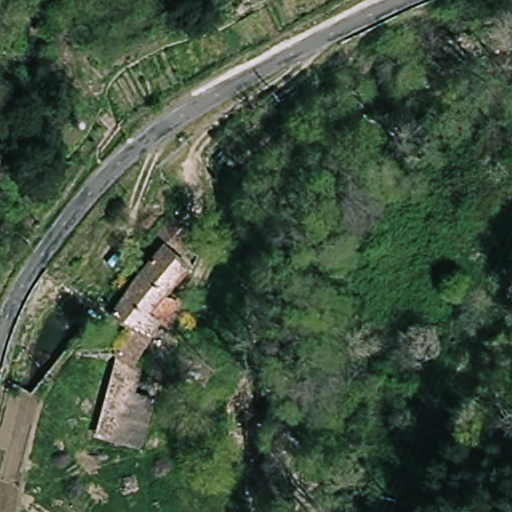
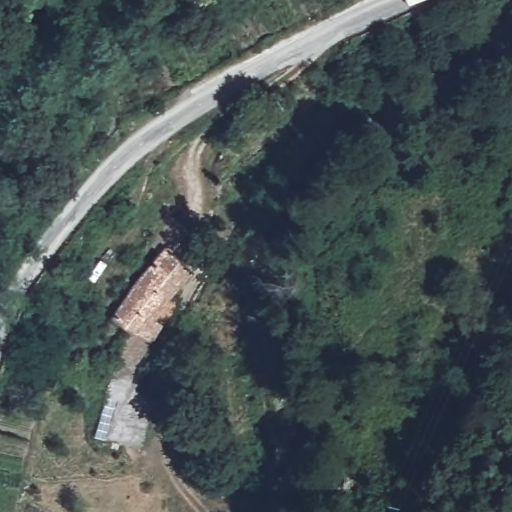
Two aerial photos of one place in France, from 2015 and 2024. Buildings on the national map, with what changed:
unchanged [(103,441),(123,359),(108,349),(126,316),(116,310),(169,244),(195,270),(158,316),(167,321),(137,366),(145,370),(139,391),(159,395),(144,451),(103,441)]

